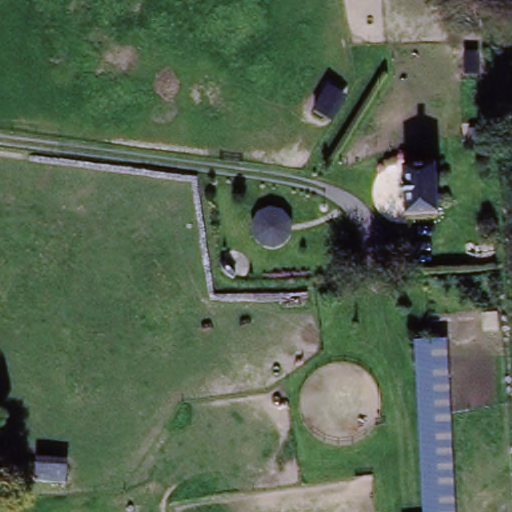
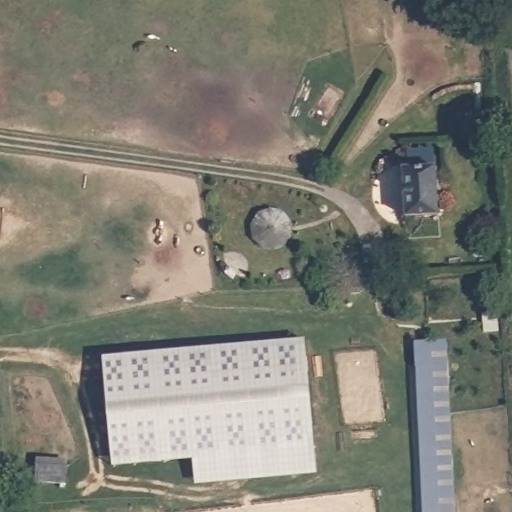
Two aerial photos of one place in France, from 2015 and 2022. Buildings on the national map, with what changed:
unchanged [(405,167),(439,167),(438,223),(405,223),(405,167)]
new [(257,219),(262,214),(269,210),(276,210),(284,212),(290,218),(293,225),(293,232),(291,239),(286,245),(279,249),(272,249),(268,248),(263,245),(259,241),(255,234),(255,226),(257,219)]
unchanged [(422,512),(422,341),(452,342),(452,512),(422,512)]
new [(305,345),(312,450),(120,463),(112,360),(305,345)]
new [(317,449),(320,474),(195,486),(194,458),(312,450),(317,449)]

